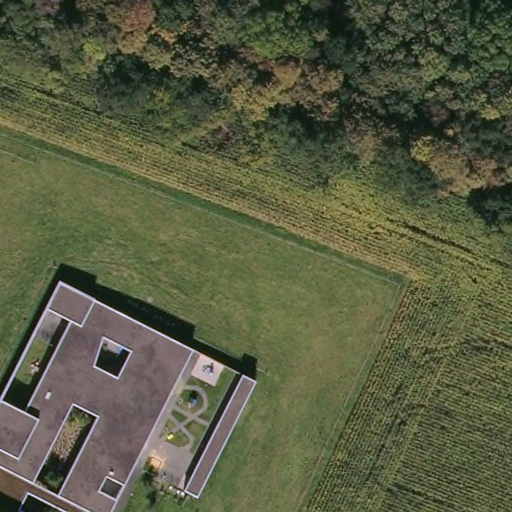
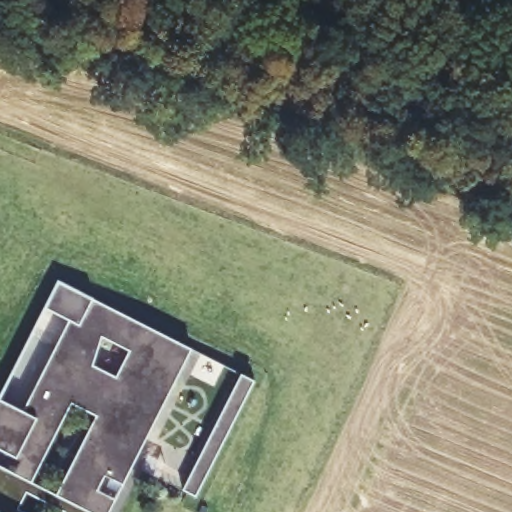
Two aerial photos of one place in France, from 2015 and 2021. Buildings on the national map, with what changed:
unchanged [(57,281),(190,350),(104,512),(0,512),(0,388),(57,281)]
unchanged [(198,503),(174,492),(235,374),(257,384),(198,503)]

